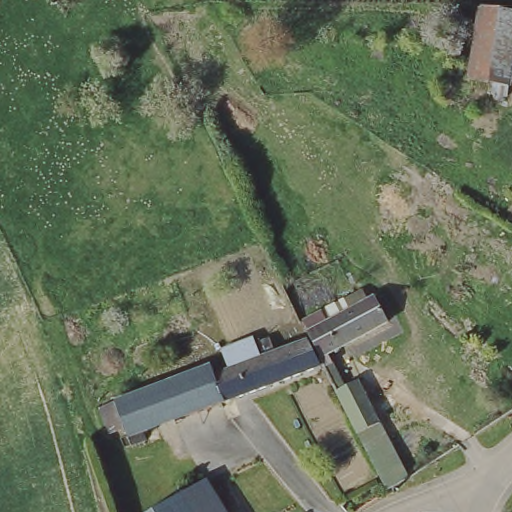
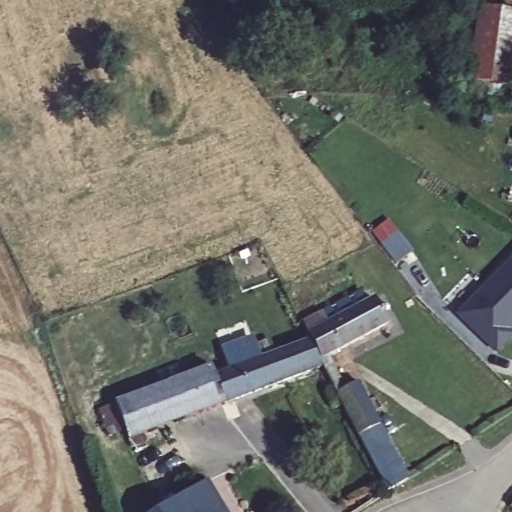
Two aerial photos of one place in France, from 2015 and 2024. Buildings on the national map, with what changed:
unchanged [(512,90),(471,81),(483,10),(512,15),(512,90)]
new [(512,338),(512,344),(499,357),(460,320),(512,268),(512,331),(509,334),(512,338)]
unchanged [(253,402),(235,355),(246,351),(256,347),(265,365),(312,348),(305,334),(325,322),(333,335),(375,310),(391,335),(348,359),(325,371),(327,375),(253,402)]
unchanged [(135,444),(131,433),(114,441),(104,412),(169,390),(179,387),(218,373),(220,380),(233,376),(227,358),(235,355),(253,402),(135,444)]
unchanged [(339,371),(352,393),(363,387),(415,485),(393,499),(335,390),(327,375),(339,371)]
unchanged [(221,512),(170,512),(207,490),(221,512)]

